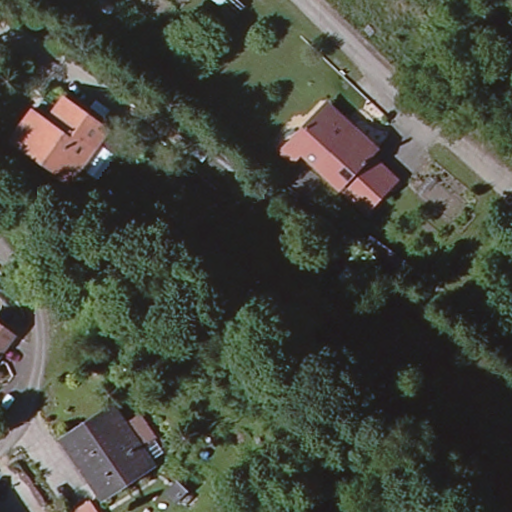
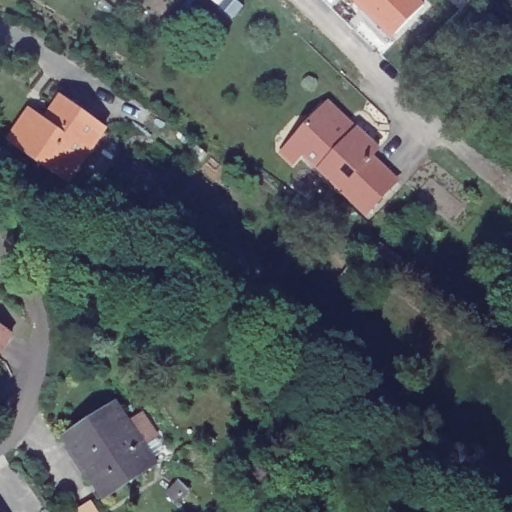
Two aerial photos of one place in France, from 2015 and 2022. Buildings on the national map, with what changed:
unchanged [(219,0),(237,0),(242,4),(232,14),(217,2),(219,0)]
new [(425,3),(393,40),(350,0),(422,0),(425,3)]
unchanged [(42,118),(59,96),(104,128),(67,179),(8,136),(29,108),(42,118)]
unchanged [(322,103),(350,130),(371,150),(364,157),(334,189),(296,152),(286,162),(275,152),(300,127),(318,108),(322,103)]
unchanged [(390,183),(360,214),(334,189),(364,157),(390,183)]
unchanged [(9,325),(0,343),(0,321),(9,325)]
unchanged [(117,408),(152,459),(105,491),(70,439),(117,408)]
new [(98,512),(71,512),(91,500),(98,512)]

